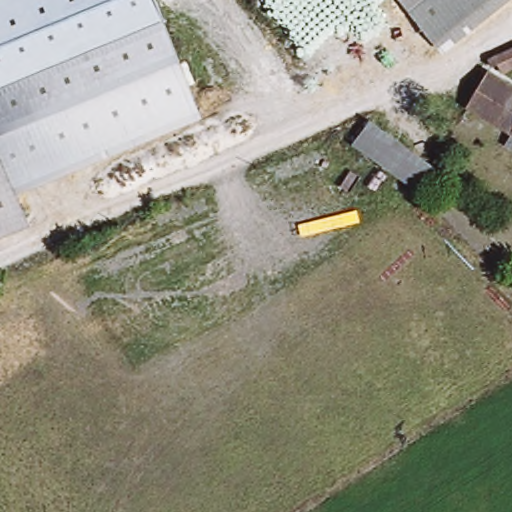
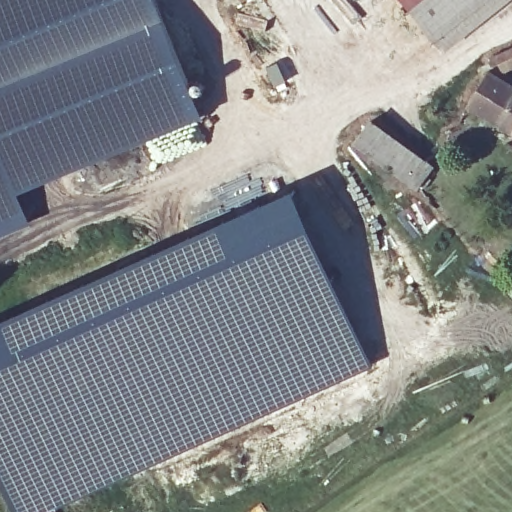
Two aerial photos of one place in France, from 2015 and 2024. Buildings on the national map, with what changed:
unchanged [(0,0),(156,0),(203,117),(18,193),(0,149),(0,0)]
unchanged [(399,0),(512,0),(512,3),(446,55),(399,0)]
unchanged [(496,49),(512,43),(512,63),(502,66),(496,49)]
unchanged [(467,109),(491,70),(512,84),(512,137),(467,109)]
unchanged [(415,180),(365,148),(381,125),(430,156),(415,180)]
unchanged [(0,240),(0,149),(32,227),(0,240)]
new [(370,366),(44,512),(17,512),(0,475),(0,318),(295,189),(370,366)]

